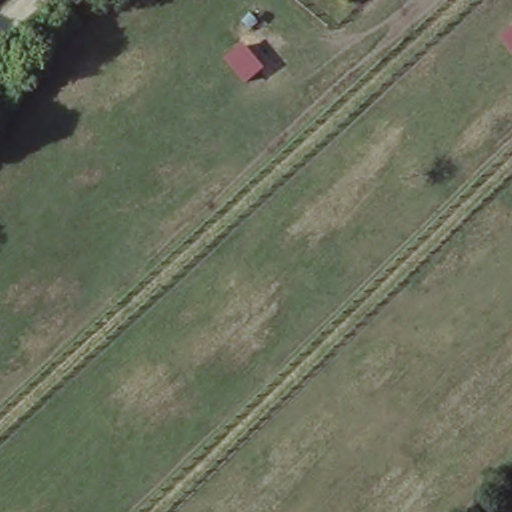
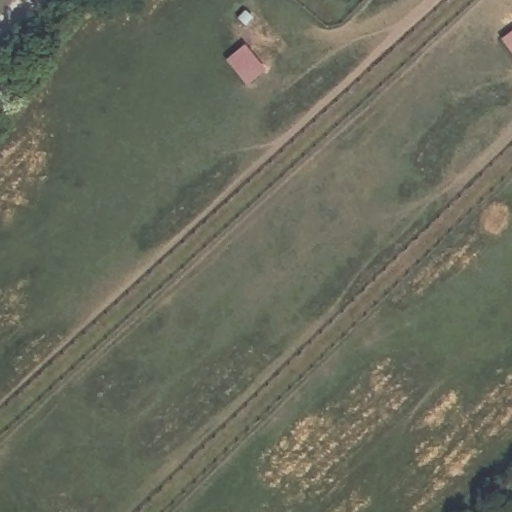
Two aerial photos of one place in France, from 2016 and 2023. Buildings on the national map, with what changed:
unchanged [(502,37),(512,30),(512,52),(502,37)]
unchanged [(225,59),(244,44),(264,69),(245,84),(225,59)]

